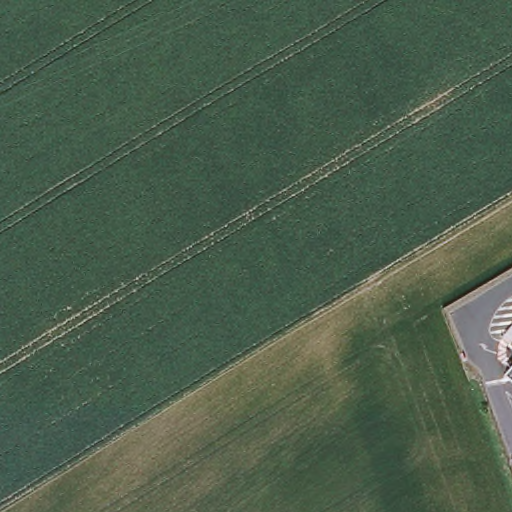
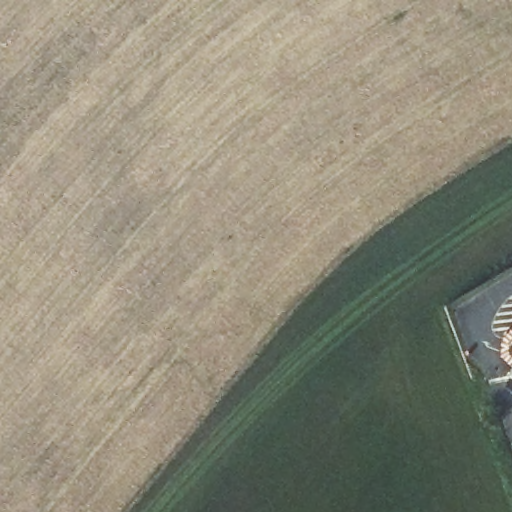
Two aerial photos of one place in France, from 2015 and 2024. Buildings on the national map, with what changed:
unchanged [(512,373),(512,377),(510,375),(512,373)]

